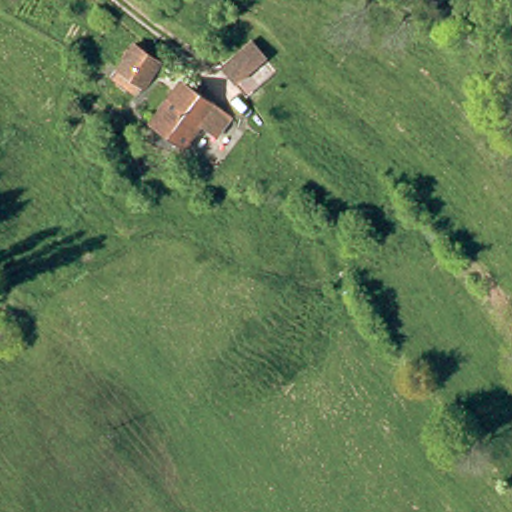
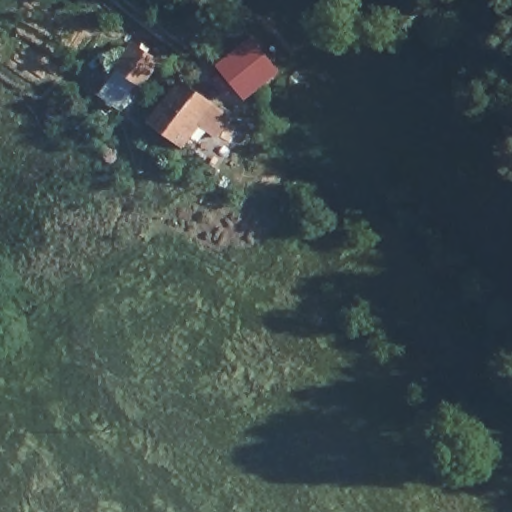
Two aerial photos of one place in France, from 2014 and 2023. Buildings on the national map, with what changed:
unchanged [(164,64),(140,95),(114,75),(140,44),(164,64)]
unchanged [(283,77),(252,103),(224,73),(257,47),(283,77)]
unchanged [(183,150),(150,120),(180,83),(216,112),(228,123),(211,141),(199,132),(183,150)]

